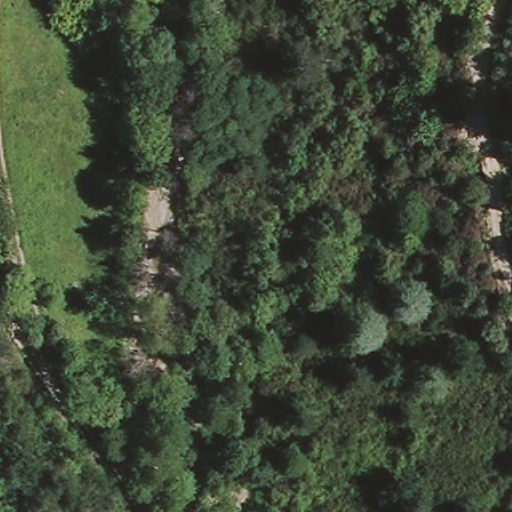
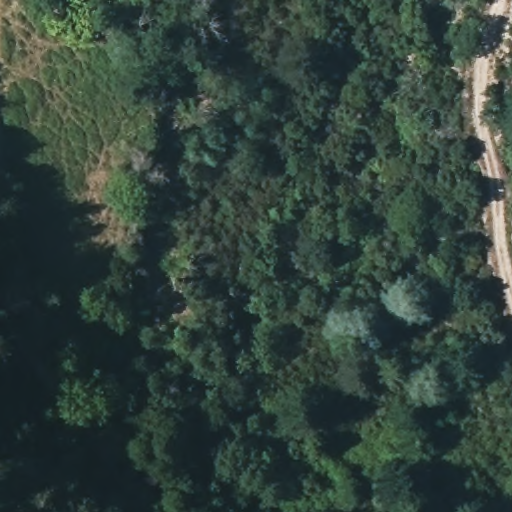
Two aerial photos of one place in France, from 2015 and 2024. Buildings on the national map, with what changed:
unchanged [(107,301),(87,300),(87,285),(106,285),(107,301)]

